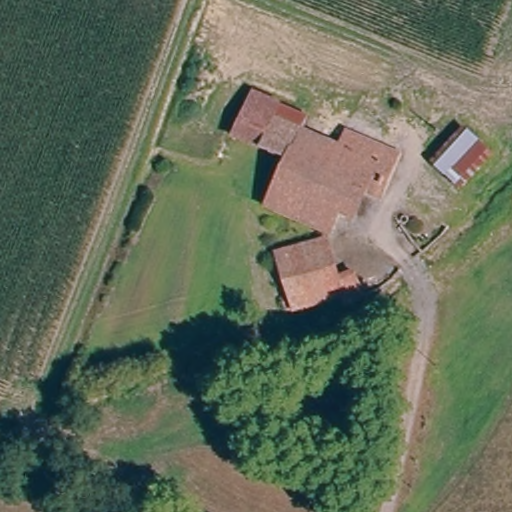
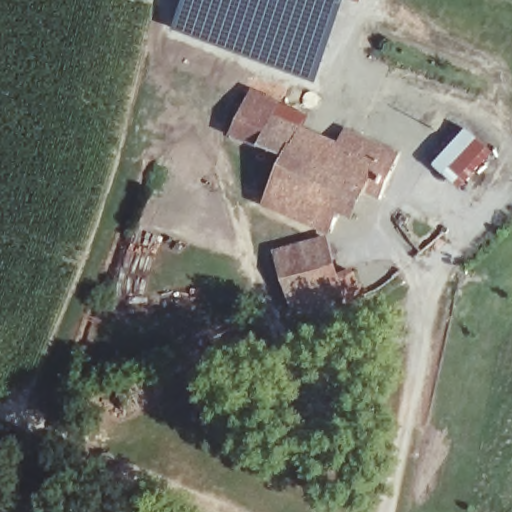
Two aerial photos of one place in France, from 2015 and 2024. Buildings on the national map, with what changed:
new [(347,0),(341,19),(316,88),(167,32),(180,0),(347,0)]
unchanged [(355,194),(346,217),(332,212),(327,227),(262,206),(275,161),(230,143),(250,91),(301,111),(296,128),(319,137),(325,124),(363,136),(370,123),(395,134),(372,200),(355,194)]
unchanged [(433,165),(442,153),(434,144),(454,121),(494,158),(466,192),(433,165)]
unchanged [(343,312),(342,303),(288,319),(273,254),(330,238),(340,279),(358,277),(363,306),(343,312)]

